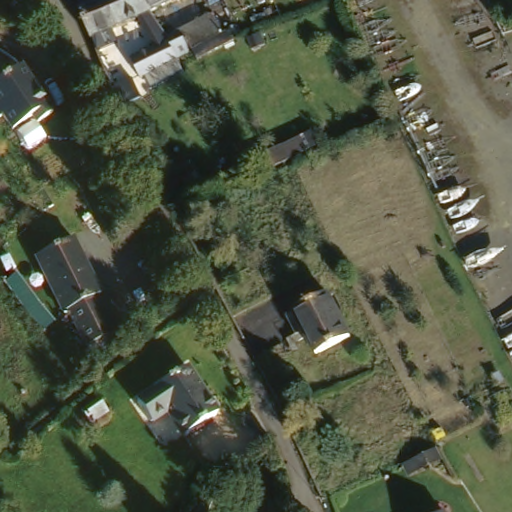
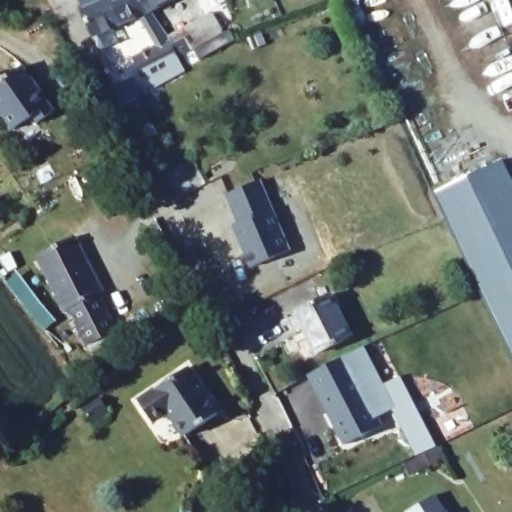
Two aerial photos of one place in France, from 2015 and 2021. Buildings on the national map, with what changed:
unchanged [(85,4),(90,1),(90,0),(117,0),(127,22),(97,35),(85,4)]
unchanged [(117,0),(150,0),(155,9),(127,22),(117,0)]
unchanged [(174,0),(155,9),(150,0),(174,0)]
unchanged [(230,32),(206,44),(184,56),(172,34),(218,11),(230,32)]
unchanged [(168,42),(178,62),(154,75),(144,55),(168,42)]
unchanged [(8,132),(0,120),(0,78),(19,65),(46,112),(8,132)]
new [(320,145),(261,173),(255,155),(311,129),(320,145)]
new [(497,161),(512,192),(512,362),(432,199),(497,161)]
new [(272,206),(290,251),(250,268),(231,225),(236,222),(224,195),(260,179),(272,206)]
unchanged [(110,292),(104,296),(127,330),(102,345),(77,310),(71,313),(40,270),(77,244),(110,292)]
unchanged [(358,335),(325,351),(302,307),(337,290),(358,335)]
new [(382,385),(399,376),(435,446),(442,461),(409,476),(403,463),(415,457),(392,408),(377,417),(382,425),(343,445),(306,375),(362,346),(382,385)]
unchanged [(221,412),(187,430),(173,406),(156,416),(144,393),(192,365),(221,412)]
unchanged [(107,400),(117,411),(101,425),(91,413),(107,400)]
unchanged [(449,505),(453,512),(439,512),(449,505)]

